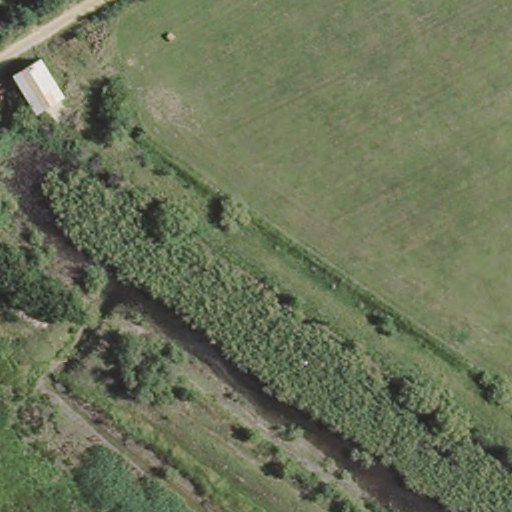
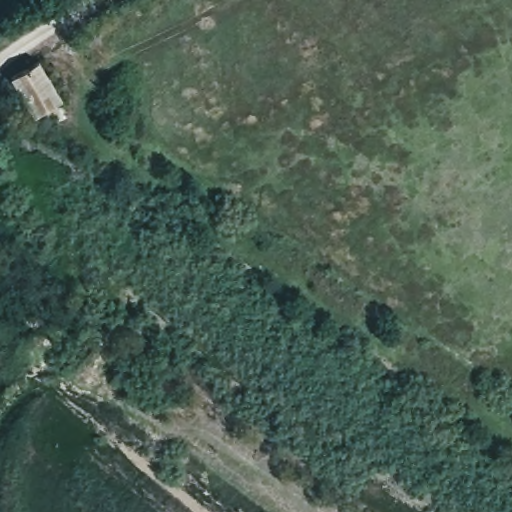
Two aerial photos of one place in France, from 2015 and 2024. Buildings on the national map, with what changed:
unchanged [(31,55),(55,93),(28,110),(5,70),(31,55)]

